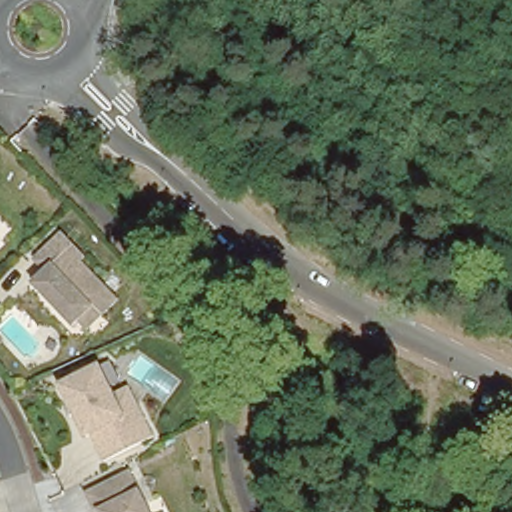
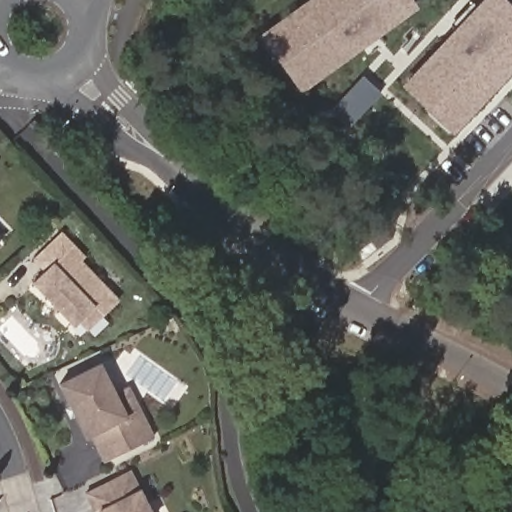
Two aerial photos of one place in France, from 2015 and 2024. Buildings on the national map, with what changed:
new [(316,0),(417,0),(425,11),(306,96),(267,36),(316,0)]
new [(512,3),(512,82),(458,139),(409,86),(489,0),(509,0),(512,3)]
unchanged [(89,331),(80,320),(74,326),(28,284),(43,271),(32,261),(61,235),(117,299),(89,331)]
unchanged [(101,464),(91,435),(84,438),(58,385),(98,365),(114,395),(117,393),(127,388),(152,438),(101,464)]
unchanged [(130,473),(149,512),(95,512),(85,495),(130,473)]

